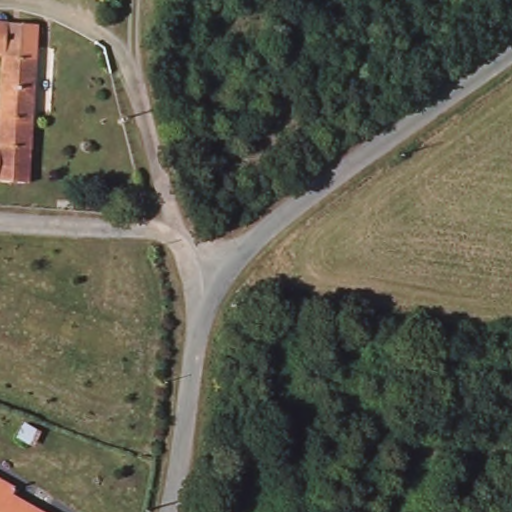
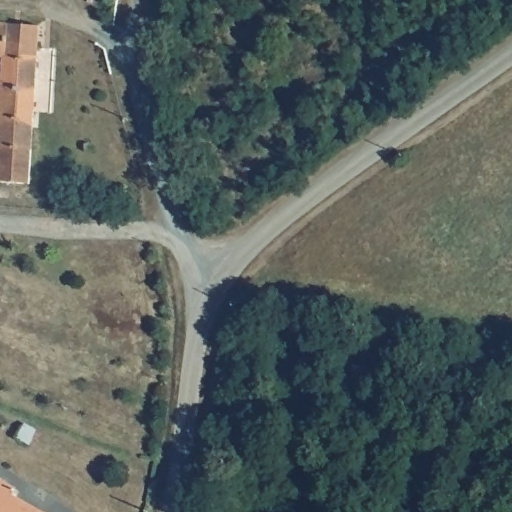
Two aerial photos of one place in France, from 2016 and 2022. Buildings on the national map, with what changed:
unchanged [(0,53),(0,20),(42,22),(32,183),(0,181),(0,98),(3,53),(0,53)]
unchanged [(45,512),(0,512),(0,478),(4,480),(1,490),(45,512)]

